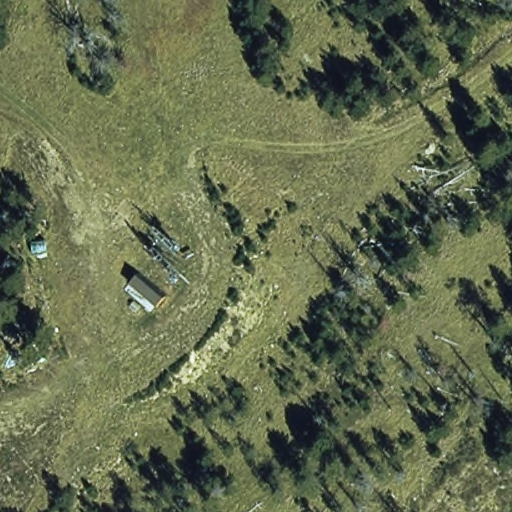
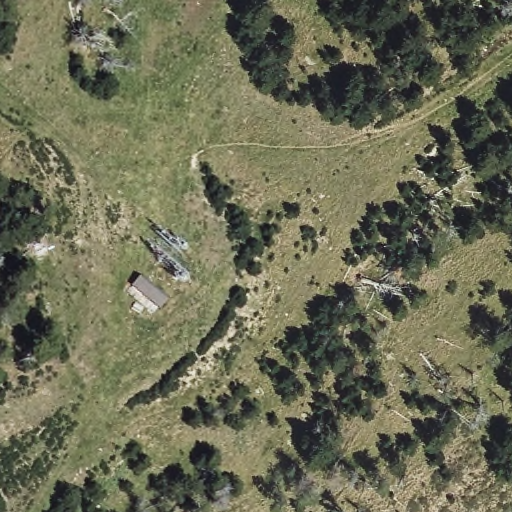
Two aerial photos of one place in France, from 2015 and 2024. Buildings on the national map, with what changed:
unchanged [(128,289),(138,275),(168,303),(155,317),(128,289)]

